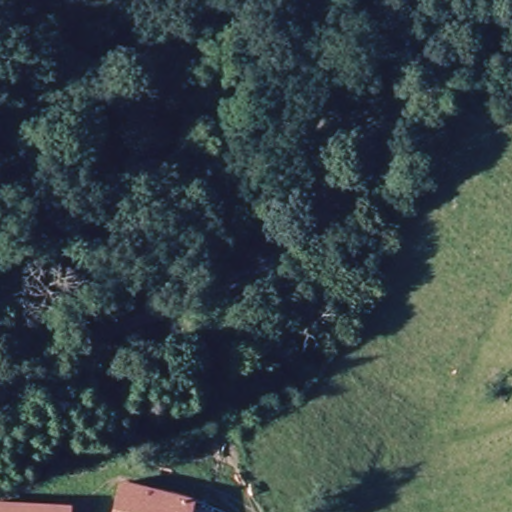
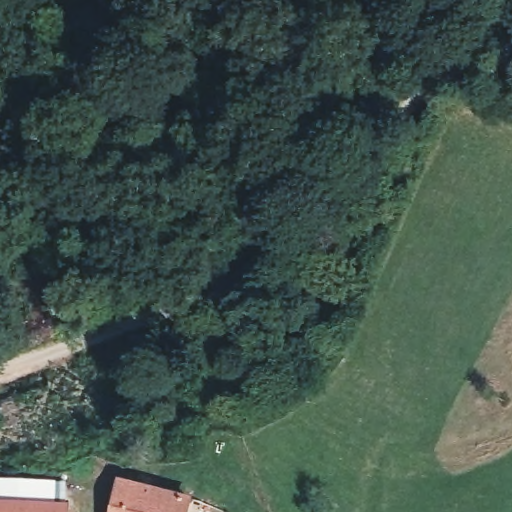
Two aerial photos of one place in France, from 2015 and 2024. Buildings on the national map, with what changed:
unchanged [(182,512),(113,512),(120,485),(185,502),(182,512)]
unchanged [(63,503),(63,512),(0,512),(0,502),(63,503)]

